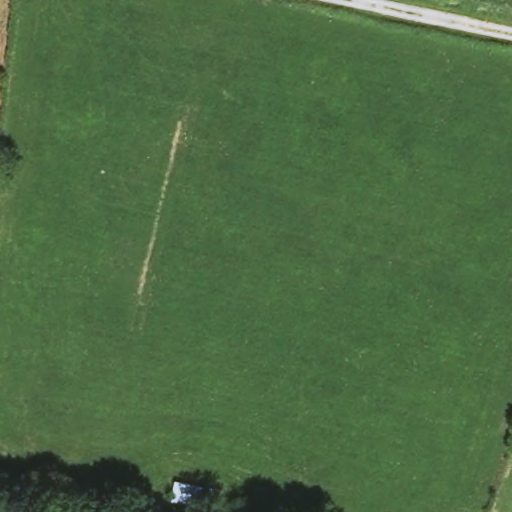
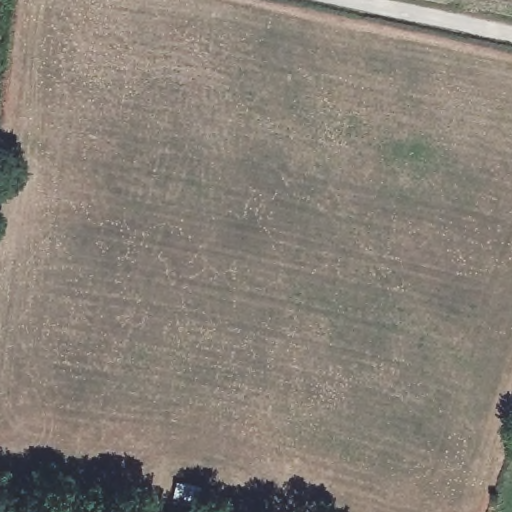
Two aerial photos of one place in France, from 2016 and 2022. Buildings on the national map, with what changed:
unchanged [(204,481),(201,503),(169,500),(171,476),(204,481)]

